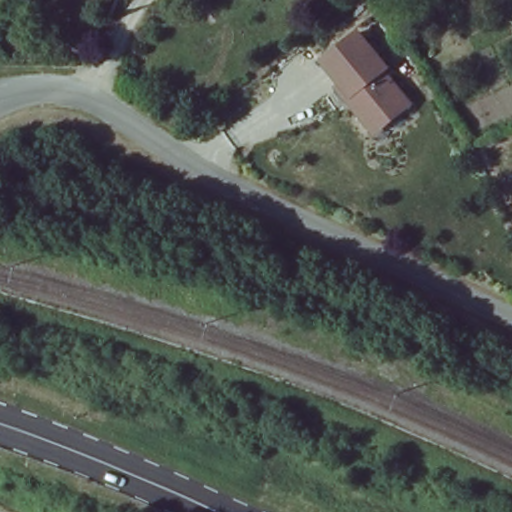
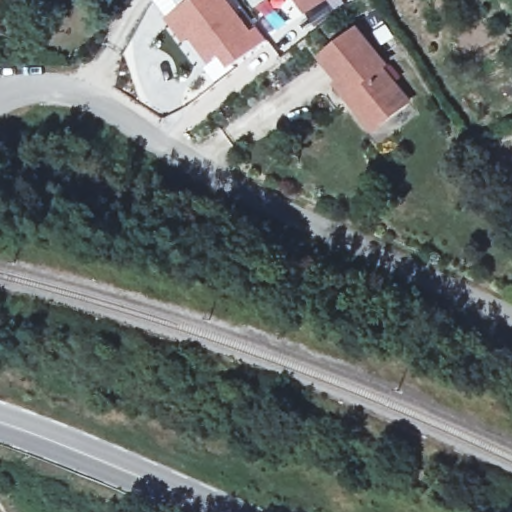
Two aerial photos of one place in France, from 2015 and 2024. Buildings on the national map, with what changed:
new [(190,39),(184,43),(167,20),(192,0),(227,0),(252,31),(258,28),(267,41),(231,69),(220,56),(210,65),(190,39)]
new [(305,15),(294,0),(327,0),(305,15)]
unchanged [(358,111),(348,99),(350,87),(345,81),(342,83),(322,59),(356,30),(384,65),(380,69),(407,102),(381,122),(373,130),(358,111)]

